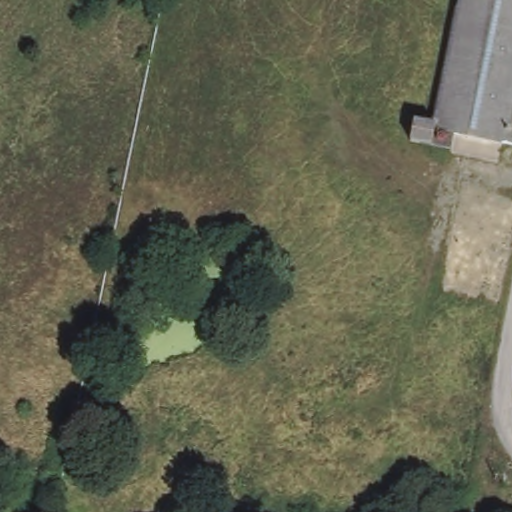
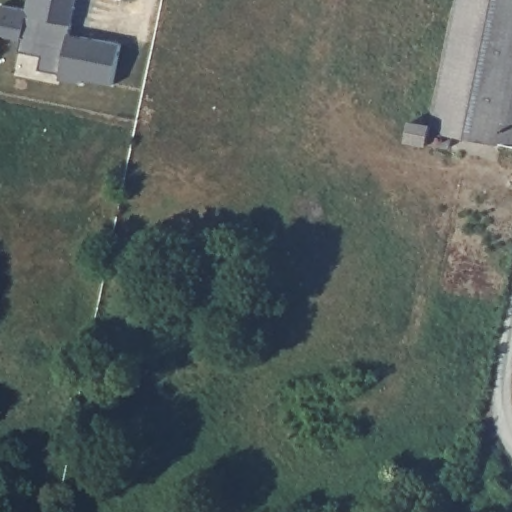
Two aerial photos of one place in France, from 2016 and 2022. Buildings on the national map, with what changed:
new [(114,85),(81,78),(80,85),(60,80),(61,75),(40,70),(42,57),(20,52),(24,40),(0,35),(0,18),(2,6),(27,12),(30,0),(78,0),(71,35),(121,45),(114,85)]
unchanged [(512,148),(500,145),(498,155),(482,151),(484,142),(447,135),(445,149),(405,140),(410,121),(429,125),(455,0),(512,0),(512,148)]

